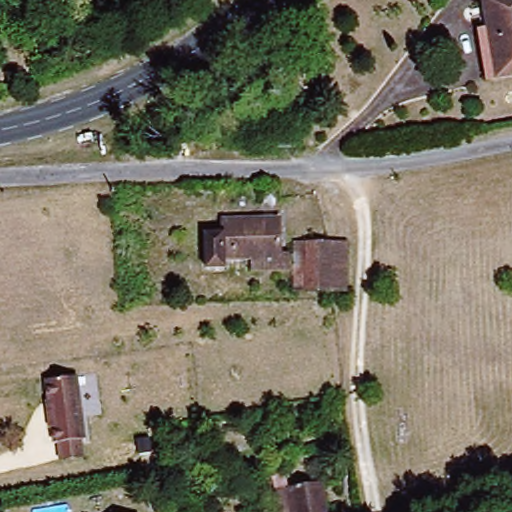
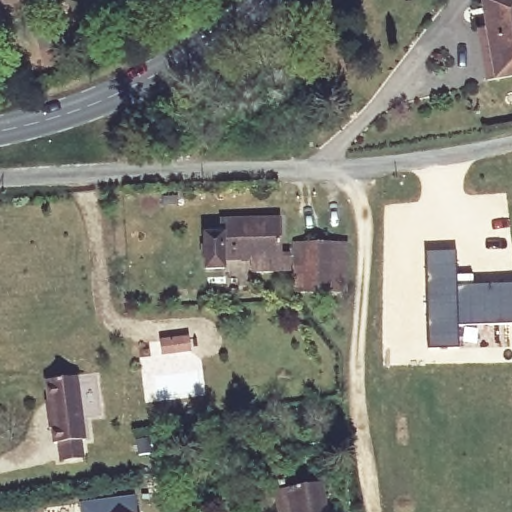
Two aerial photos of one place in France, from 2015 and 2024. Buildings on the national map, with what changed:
unchanged [(512,77),(497,80),(484,0),(512,0),(512,77)]
unchanged [(292,265),(256,265),(255,253),(227,253),(227,264),(209,264),(208,229),(226,229),(226,216),(283,215),(284,252),(292,252),(292,265)]
unchanged [(297,239),(325,239),(332,238),(350,239),(348,286),(332,287),(297,286),(297,239)]
new [(455,249),(457,274),(459,326),(460,347),(427,348),(425,249),(455,249)]
new [(474,283),(512,283),(512,323),(459,326),(457,274),(473,273),(474,283)]
unchanged [(59,459),(56,441),(53,442),(45,379),(75,375),(83,438),(81,438),(83,456),(59,459)]
unchanged [(319,483),(324,512),(290,512),(285,488),(319,483)]

